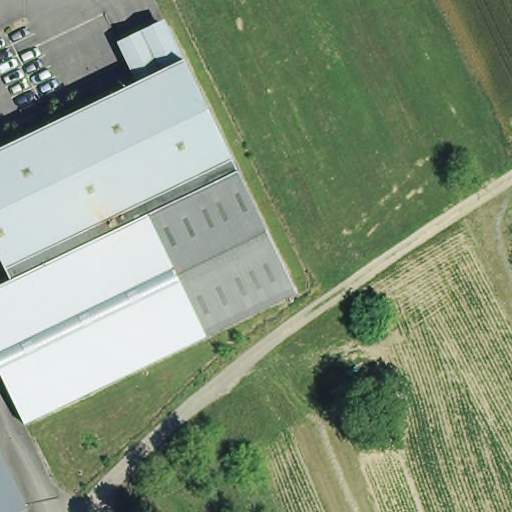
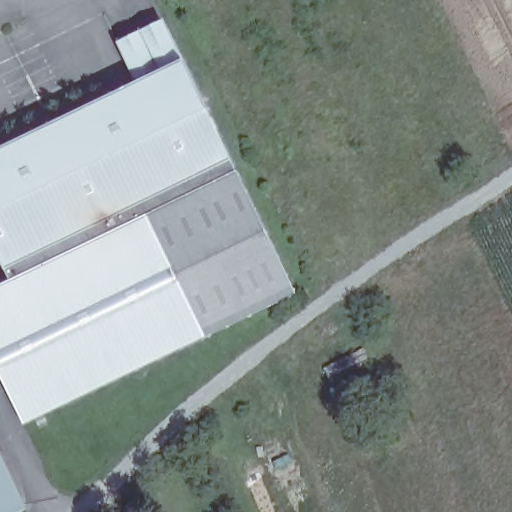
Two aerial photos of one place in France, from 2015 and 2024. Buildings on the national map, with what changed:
unchanged [(0,152),(139,89),(124,56),(170,33),(239,176),(165,210),(159,196),(145,203),(152,217),(11,282),(0,258),(0,152)]
unchanged [(145,203),(159,196),(165,210),(239,176),(298,299),(25,429),(4,384),(0,386),(0,287),(11,282),(152,217),(145,203)]
unchanged [(0,462),(24,512),(0,512),(0,462)]

